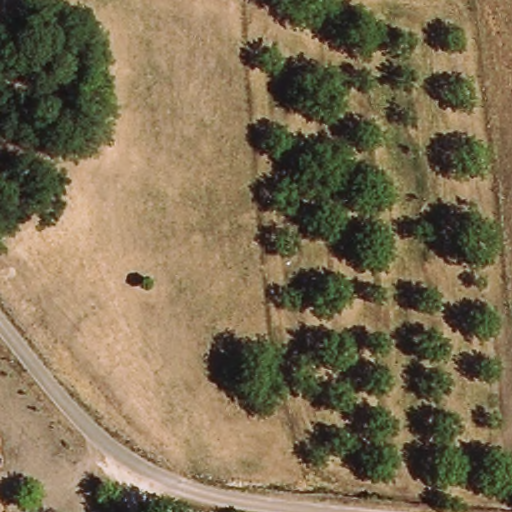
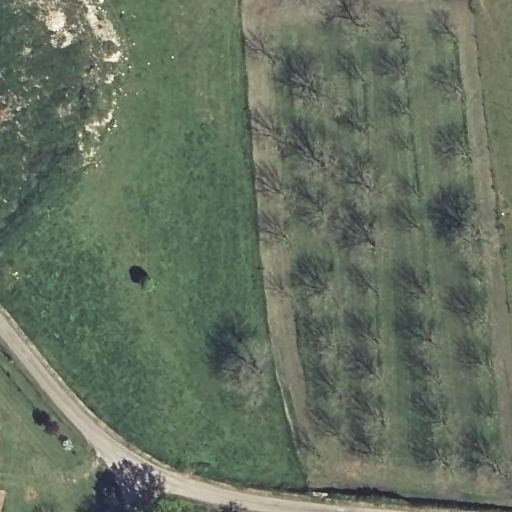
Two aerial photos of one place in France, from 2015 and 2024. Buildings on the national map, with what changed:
[]

